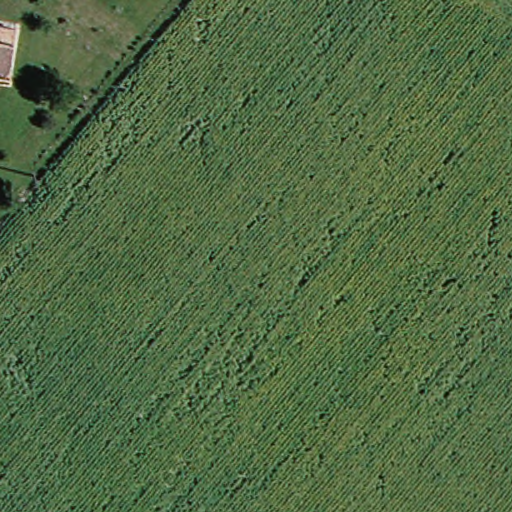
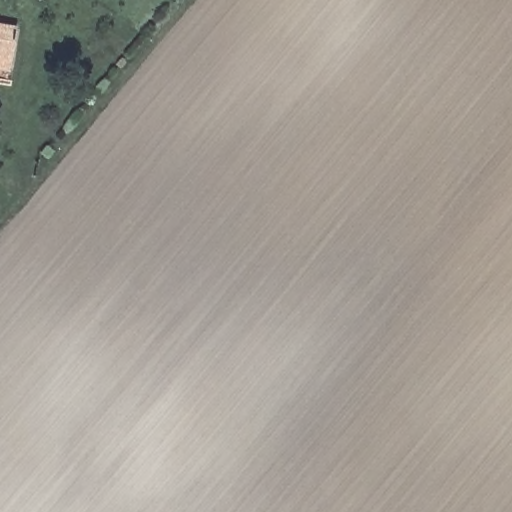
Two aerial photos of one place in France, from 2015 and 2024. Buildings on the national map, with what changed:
unchanged [(15,56),(0,55),(0,23),(17,25),(15,56)]

